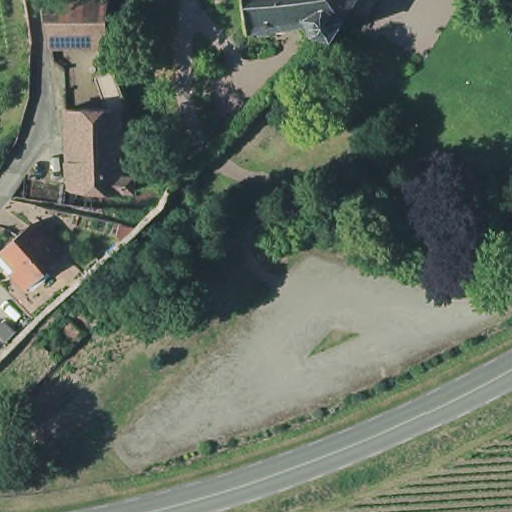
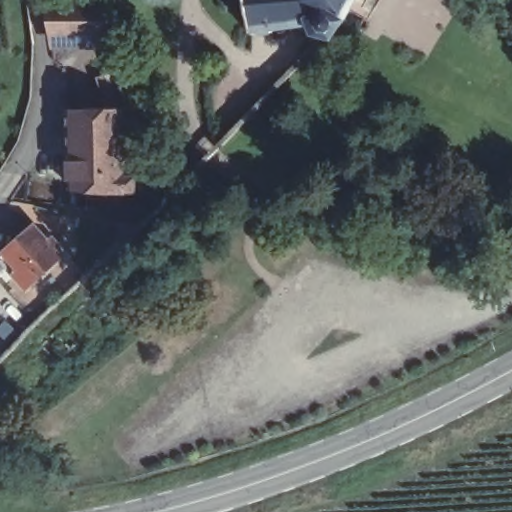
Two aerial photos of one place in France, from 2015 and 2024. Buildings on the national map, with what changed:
unchanged [(111,0),(111,39),(88,40),(54,40),(48,0),(111,0)]
unchanged [(342,30),(340,29),(335,26),(326,34),(319,40),(304,16),(281,19),(281,26),(274,26),(268,26),(267,20),(264,20),(259,27),(256,25),(256,16),(254,0),(360,0),(358,4),(342,30)]
unchanged [(358,4),(360,0),(384,0),(376,14),(358,4)]
unchanged [(75,181),(69,103),(110,103),(100,71),(117,65),(131,103),(131,134),(131,139),(131,143),(131,165),(141,168),(139,184),(75,181)]
unchanged [(47,195),(28,192),(31,173),(49,176),(49,177),(75,181),(72,199),(47,195)]
unchanged [(1,253),(10,245),(41,217),(70,250),(33,283),(20,268),(17,271),(1,253)]

